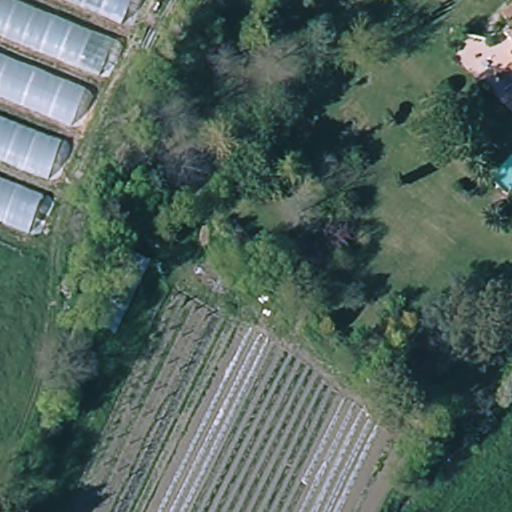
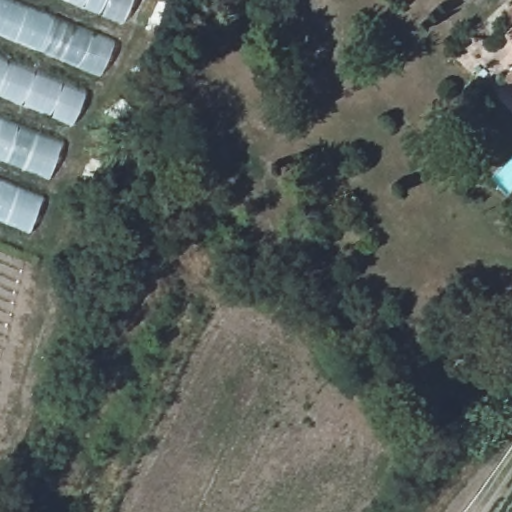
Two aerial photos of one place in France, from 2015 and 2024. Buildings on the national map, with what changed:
unchanged [(93,77),(30,231),(0,219),(0,0),(131,0),(100,80),(93,77)]
unchanged [(504,39),(512,32),(512,47),(504,39)]
unchanged [(501,79),(512,68),(512,90),(501,79)]

